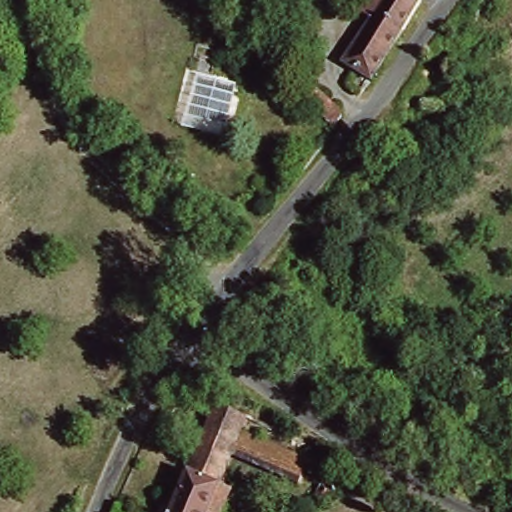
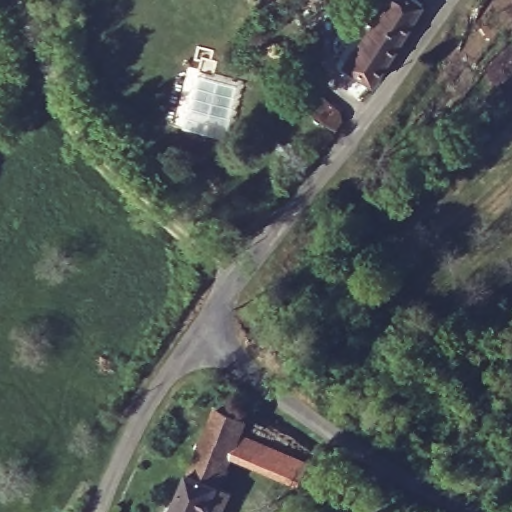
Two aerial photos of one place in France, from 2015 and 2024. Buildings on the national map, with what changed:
unchanged [(370,9),(376,0),(429,0),(378,77),(350,58),(380,15),(370,9)]
unchanged [(313,67),(321,73),(315,83),(306,78),(313,67)]
unchanged [(348,108),(353,123),(350,128),(312,108),(325,88),(348,108)]
unchanged [(311,476),(308,484),(235,455),(222,483),(235,488),(224,512),(177,512),(222,397),(251,415),(245,430),(310,462),(307,474),(311,476)]
unchanged [(296,431),(310,437),(307,445),(290,441),(296,431)]

